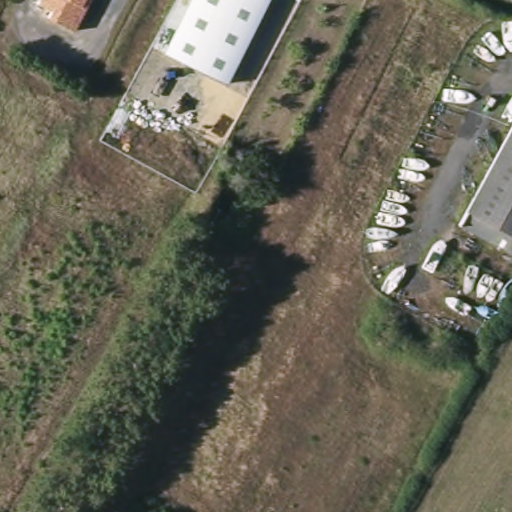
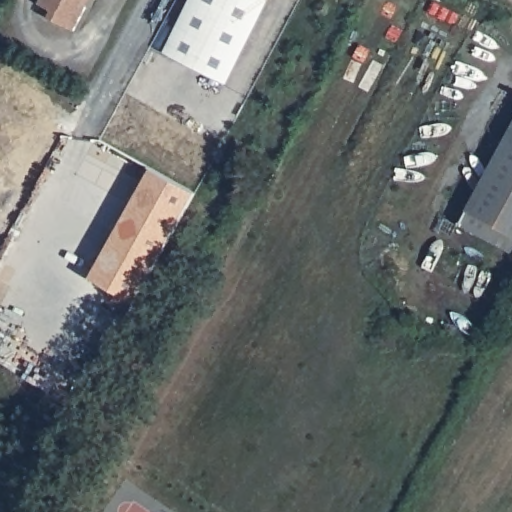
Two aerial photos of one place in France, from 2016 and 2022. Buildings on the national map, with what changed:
unchanged [(48,18),(52,11),(37,3),(39,0),(91,0),(86,8),(75,31),(48,18)]
unchanged [(162,53),(188,0),(269,0),(227,84),(162,53)]
unchanged [(512,131),(512,253),(461,226),(512,131)]
unchanged [(274,175),(268,188),(254,180),(261,168),(274,175)]
new [(153,170),(196,194),(133,301),(90,276),(153,170)]

